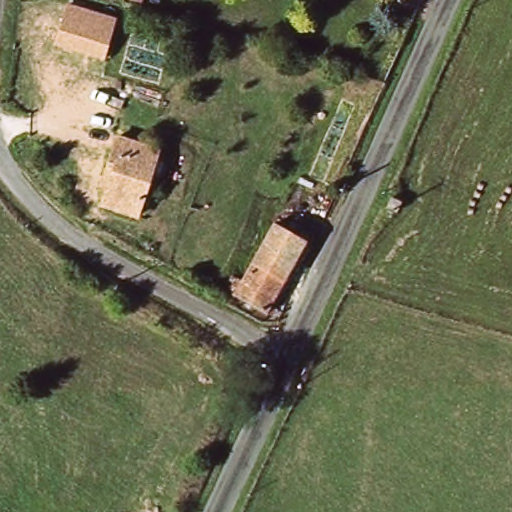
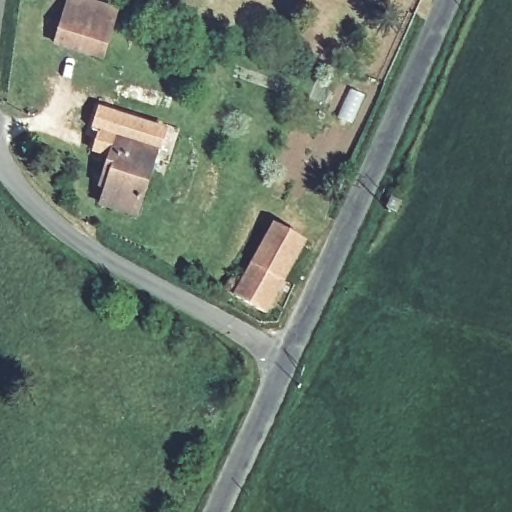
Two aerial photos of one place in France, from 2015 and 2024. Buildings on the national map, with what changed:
unchanged [(147,0),(144,9),(122,4),(124,0),(147,0)]
unchanged [(66,4),(116,19),(104,63),(53,49),(66,4)]
new [(113,145),(110,158),(92,153),(98,130),(91,129),(98,106),(168,129),(155,156),(113,145)]
unchanged [(113,145),(155,156),(137,222),(104,213),(109,193),(102,192),(113,145)]
unchanged [(390,192),(407,199),(403,210),(386,204),(390,192)]
unchanged [(271,315),(229,295),(234,284),(244,289),(276,226),(310,241),(271,315)]

